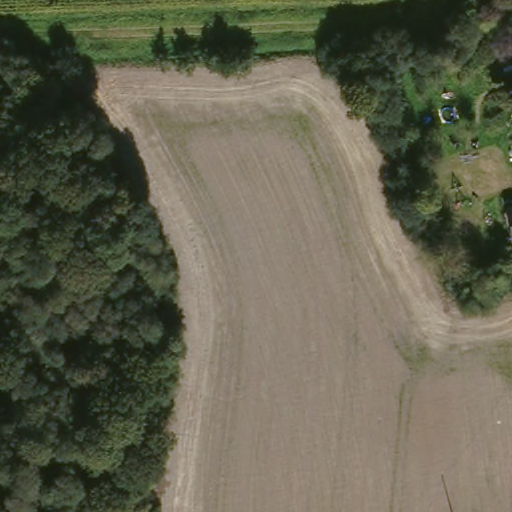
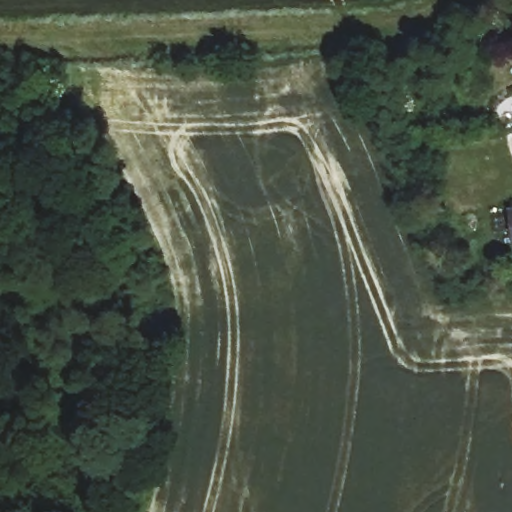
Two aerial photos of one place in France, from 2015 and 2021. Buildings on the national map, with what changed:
unchanged [(506,206),(512,205),(512,240),(511,241),(506,206)]

